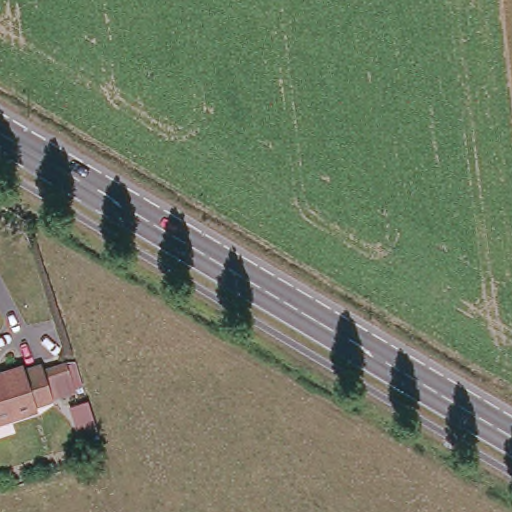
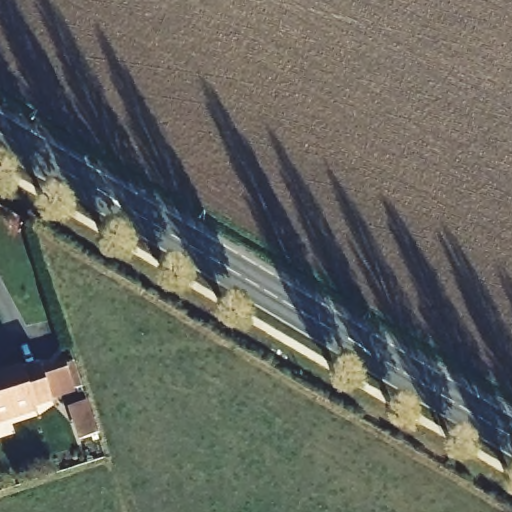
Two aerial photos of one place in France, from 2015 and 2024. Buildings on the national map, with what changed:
unchanged [(1,373),(24,367),(26,371),(43,366),(54,402),(37,407),(38,413),(0,425),(0,379),(3,378),(1,373)]

